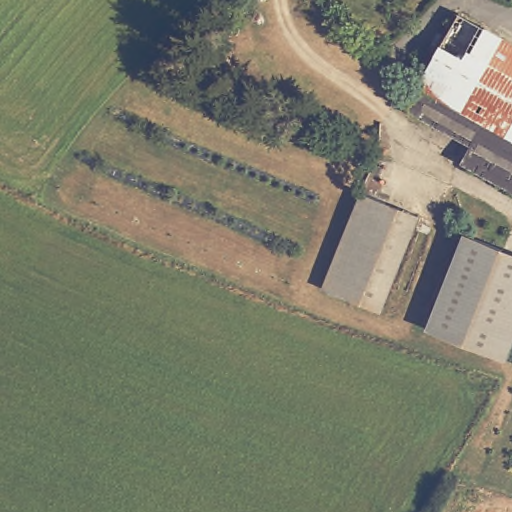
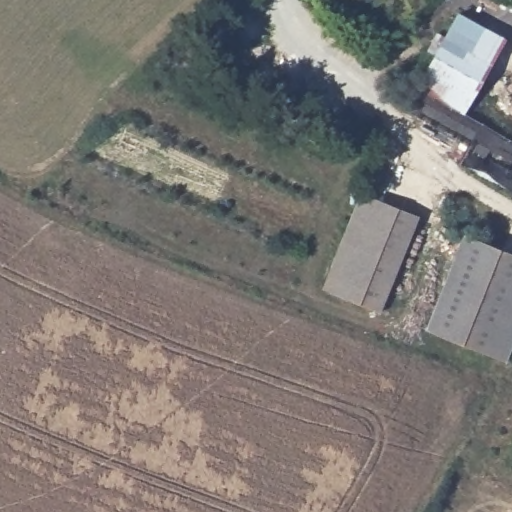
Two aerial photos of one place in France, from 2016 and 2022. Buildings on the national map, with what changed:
unchanged [(512,44),(512,141),(414,85),(431,54),(422,49),(427,40),(436,44),(454,12),(512,44)]
unchanged [(422,49),(427,40),(436,44),(434,48),(431,54),(422,49)]
unchanged [(456,162),(464,144),(401,108),(414,85),(512,141),(512,193),(456,162)]
unchanged [(379,315),(324,291),(364,195),(421,221),(379,315)]
unchanged [(479,350),(420,324),(463,232),(512,253),(512,278),(479,350)]

